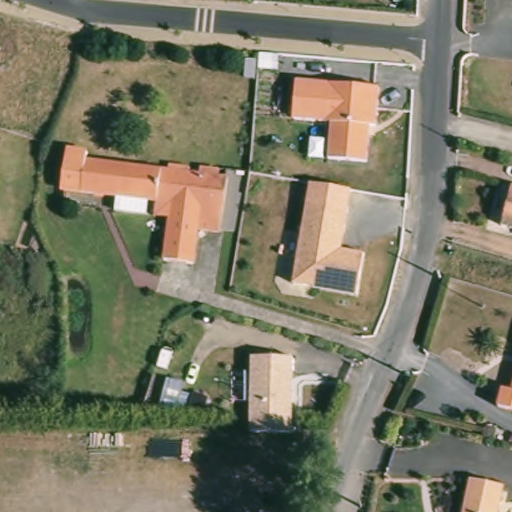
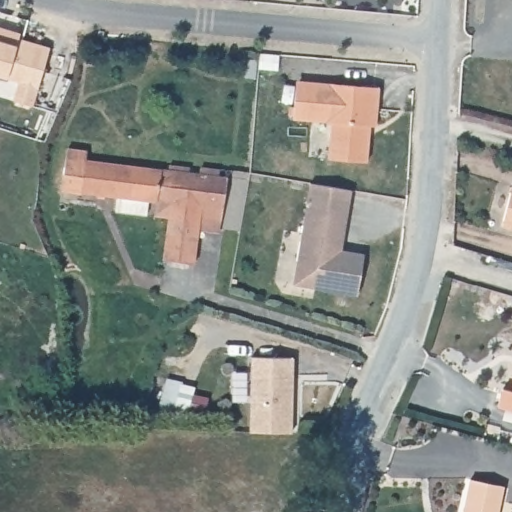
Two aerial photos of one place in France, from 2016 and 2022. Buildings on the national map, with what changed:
new [(14,101),(17,81),(6,78),(0,76),(0,27),(20,33),(19,38),(49,47),(34,106),(14,101)]
unchanged [(327,88),(328,83),(378,87),(375,125),(370,125),(367,162),(328,158),(332,121),(293,118),(296,85),(327,88)]
unchanged [(86,157),(86,164),(227,183),(220,237),(199,234),(194,270),(164,266),(172,209),(61,195),(67,154),(86,157)]
unchanged [(502,227),(512,189),(512,230),(502,227)]
unchanged [(347,211),(341,252),(363,256),(357,296),(293,286),(305,205),(347,211)]
unchanged [(252,357),(293,358),(292,433),(251,432),(252,357)]
unchanged [(510,397),(512,388),(512,397),(510,397)]
unchanged [(464,512),(470,484),(503,491),(498,512),(464,512)]

